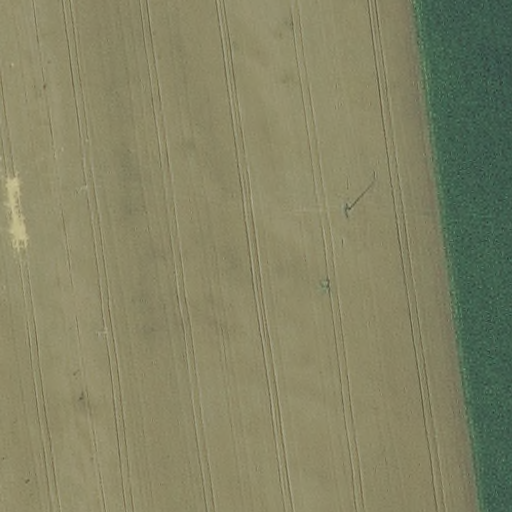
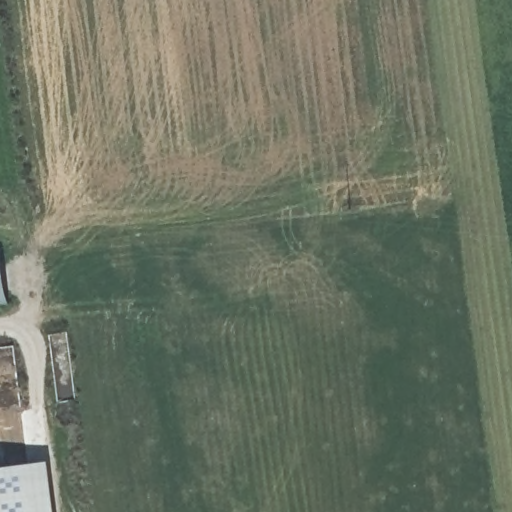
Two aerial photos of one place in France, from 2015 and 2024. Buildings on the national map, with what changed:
new [(0,251),(3,250),(9,302),(0,302),(0,251)]
new [(55,512),(0,512),(0,467),(49,461),(55,512)]

